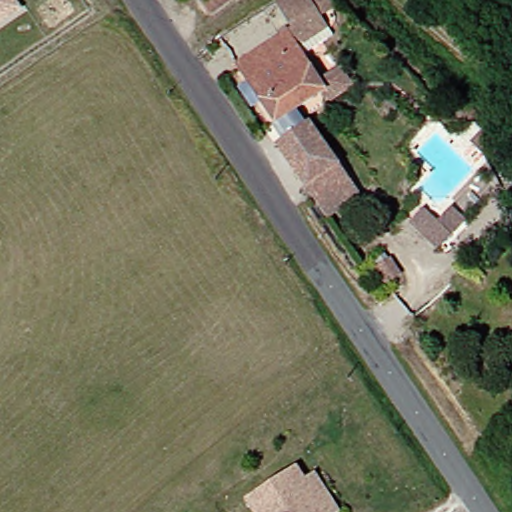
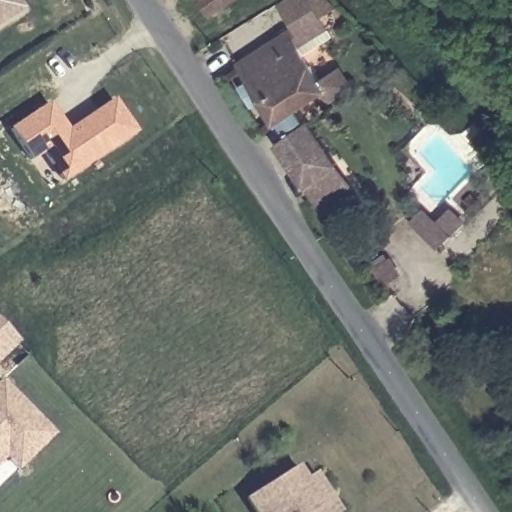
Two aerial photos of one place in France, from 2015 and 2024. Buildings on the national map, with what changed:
unchanged [(0,25),(0,0),(18,0),(24,9),(0,25)]
unchanged [(219,0),(202,13),(194,0),(219,0)]
unchanged [(276,121),(240,64),(282,35),(259,4),(264,0),(324,0),(327,4),(312,14),(304,21),(316,41),(304,49),(328,84),(276,121)]
new [(67,129),(109,100),(130,132),(62,177),(42,154),(31,161),(9,129),(48,102),(67,129)]
unchanged [(304,129),(333,168),(307,188),(279,148),(304,129)]
unchanged [(333,168),(355,199),(329,217),(307,188),(333,168)]
unchanged [(404,219),(418,207),(434,224),(452,207),(467,222),(431,250),(404,219)]
unchanged [(378,263),(363,271),(351,252),(365,243),(378,263)]
new [(17,344),(0,360),(0,324),(17,344)]
new [(0,463),(0,383),(52,437),(16,471),(4,459),(0,463)]
unchanged [(240,510),(288,469),(300,482),(309,474),(340,507),(336,512),(242,512),(240,510)]

